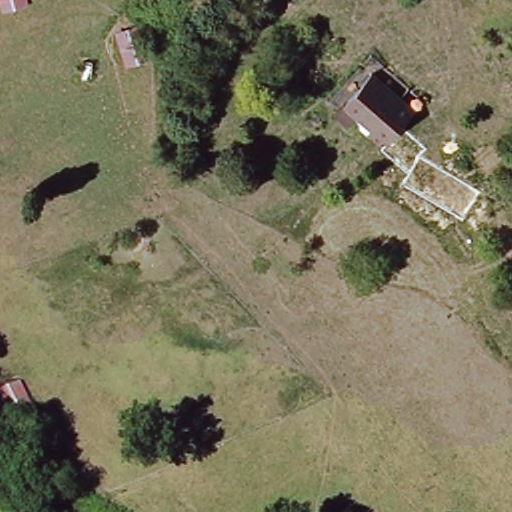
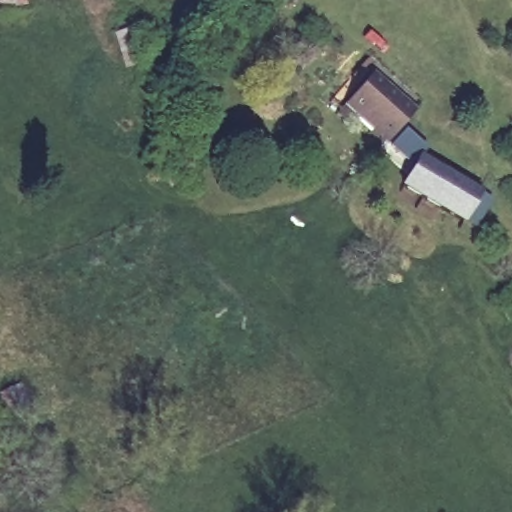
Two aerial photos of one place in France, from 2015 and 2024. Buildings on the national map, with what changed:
unchanged [(22,9),(0,12),(0,0),(19,0),(22,9)]
unchanged [(135,25),(145,63),(123,69),(109,34),(135,25)]
unchanged [(365,73),(410,113),(381,145),(376,142),(370,147),(351,130),(345,124),(347,121),(349,119),(344,115),(335,107),(338,103),(365,73)]
new [(483,193),(464,223),(400,186),(419,155),(483,193)]
unchanged [(15,381),(30,415),(5,426),(0,417),(0,388),(15,381)]

